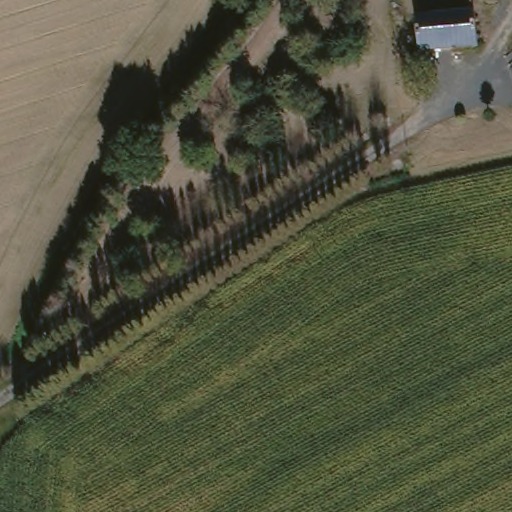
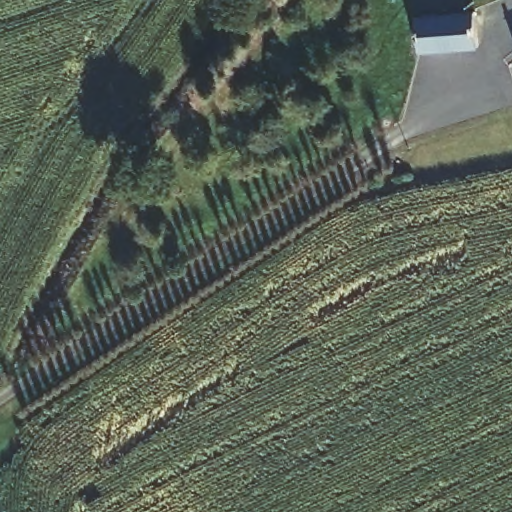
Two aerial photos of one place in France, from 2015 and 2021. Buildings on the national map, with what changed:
unchanged [(475,51),(417,58),(412,18),(471,11),(475,51)]

